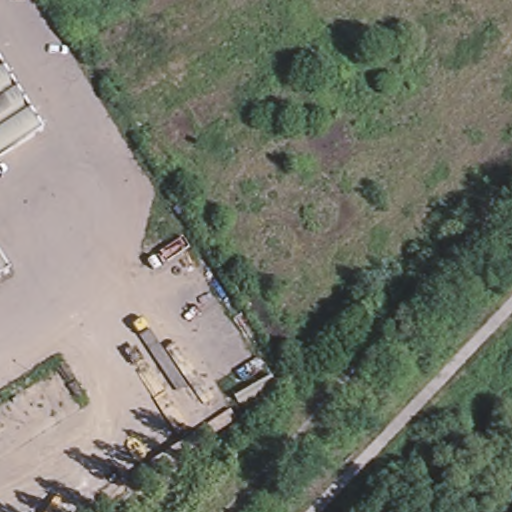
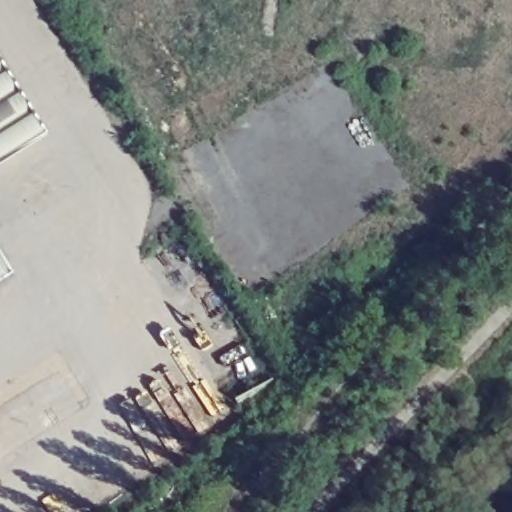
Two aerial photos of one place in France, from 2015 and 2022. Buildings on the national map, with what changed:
unchanged [(0,151),(0,75),(34,130),(0,151)]

